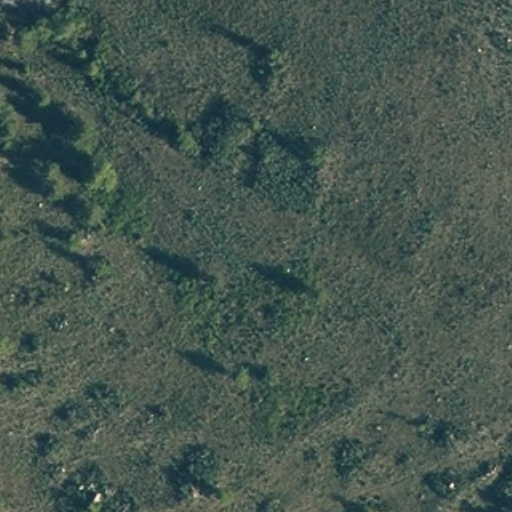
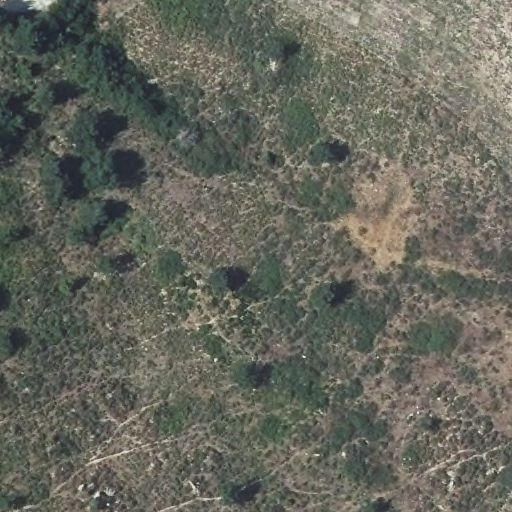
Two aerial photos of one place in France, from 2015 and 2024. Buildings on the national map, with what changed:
[]

